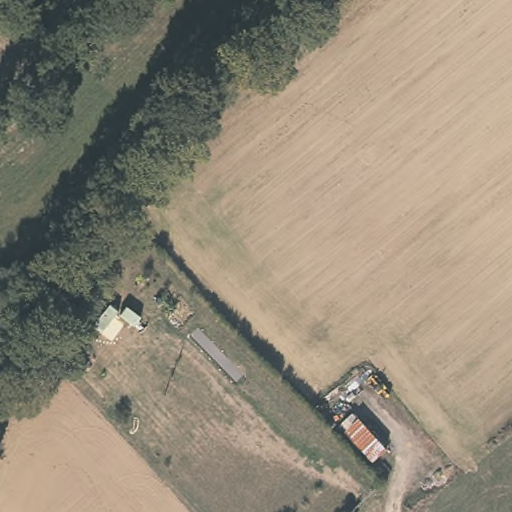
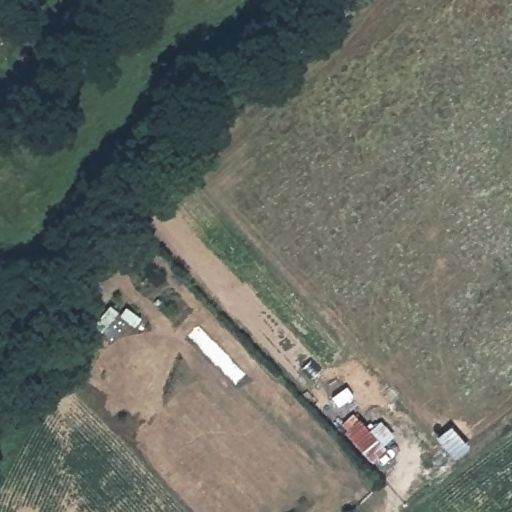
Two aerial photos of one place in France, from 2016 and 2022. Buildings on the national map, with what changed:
unchanged [(362,415),(392,445),(377,460),(347,429),(362,415)]

